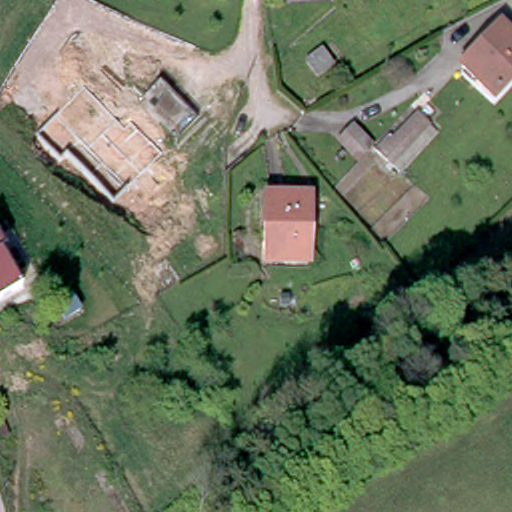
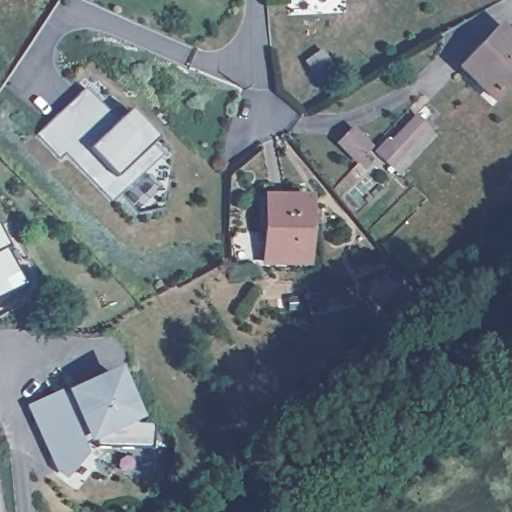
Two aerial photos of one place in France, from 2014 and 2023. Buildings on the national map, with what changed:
unchanged [(512,77),(495,97),(462,67),(499,26),(512,38),(512,77)]
demolished [(154,76),(192,117),(172,138),(132,98),(154,76)]
new [(119,119),(127,111),(155,138),(150,143),(160,155),(112,202),(67,155),(61,160),(37,134),(83,89),(119,119)]
demolished [(105,107),(163,175),(137,197),(119,174),(67,139),(105,107)]
unchanged [(392,167),(375,152),(383,142),(387,138),(392,141),(415,114),(428,125),(435,132),(405,167),(400,174),(392,167)]
unchanged [(360,152),(369,160),(361,164),(336,138),(352,122),(372,141),(360,152)]
unchanged [(310,196),(307,260),(262,257),(265,192),(310,196)]
unchanged [(7,245),(0,250),(0,235),(7,245)]
unchanged [(21,286),(0,298),(0,250),(21,286)]
new [(57,391),(64,389),(117,367),(140,419),(133,422),(149,425),(150,446),(97,445),(95,440),(87,443),(87,439),(80,443),(81,444),(86,455),(66,478),(56,471),(26,405),(57,391)]
unchanged [(9,423),(12,436),(0,440),(0,426),(9,423)]

